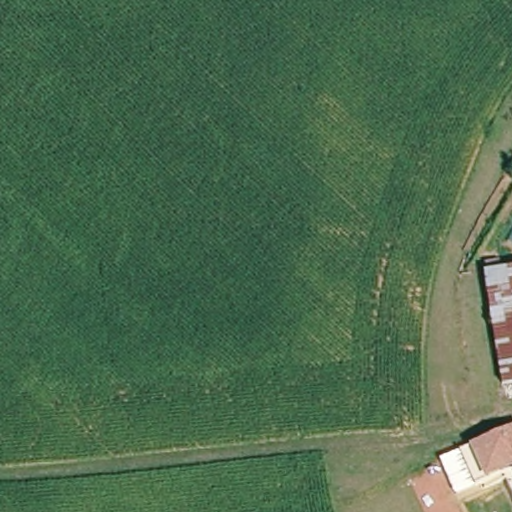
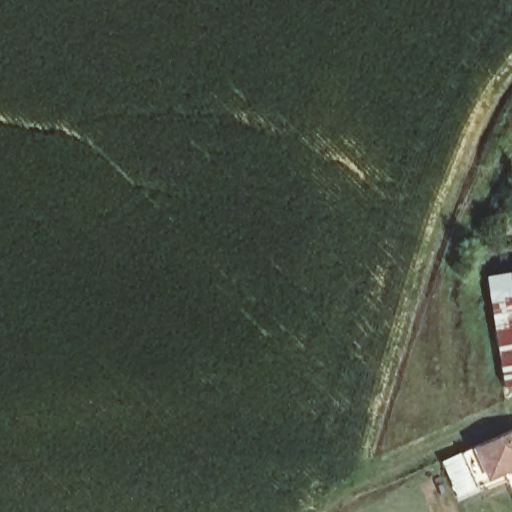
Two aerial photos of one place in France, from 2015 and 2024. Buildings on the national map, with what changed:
unchanged [(486,284),(512,279),(512,404),(508,405),(486,284)]
unchanged [(512,468),(483,480),(470,450),(512,432),(512,468)]

